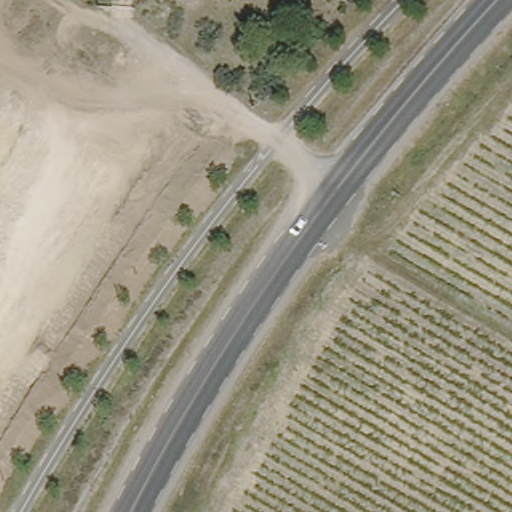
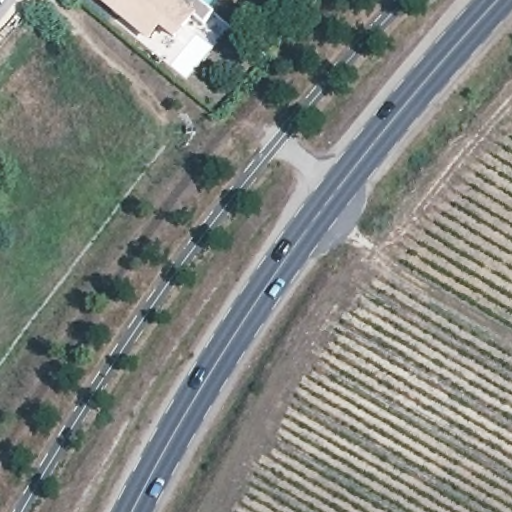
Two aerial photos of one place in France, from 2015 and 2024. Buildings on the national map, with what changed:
new [(205,24),(194,16),(174,40),(160,30),(151,42),(99,0),(198,0),(213,13),(205,24)]

